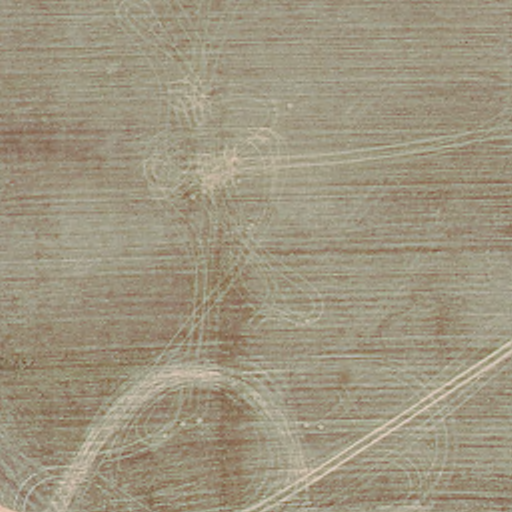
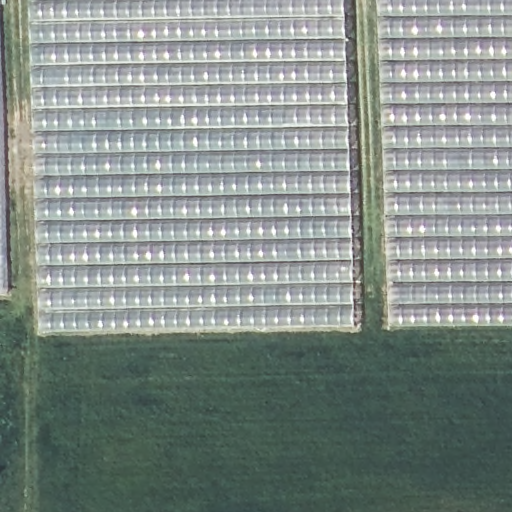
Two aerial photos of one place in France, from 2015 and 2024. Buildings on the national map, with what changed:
new [(352,170),(354,326),(283,328),(170,326),(37,331),(37,245),(31,129),(27,0),(345,0),(352,170)]
new [(512,326),(465,325),(387,327),(387,282),(379,107),(376,0),(512,0),(512,326)]

